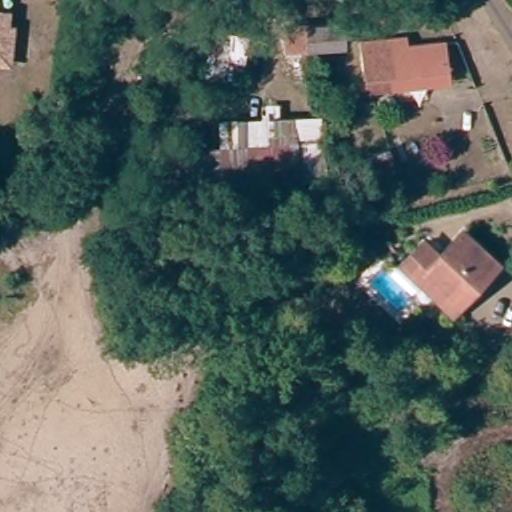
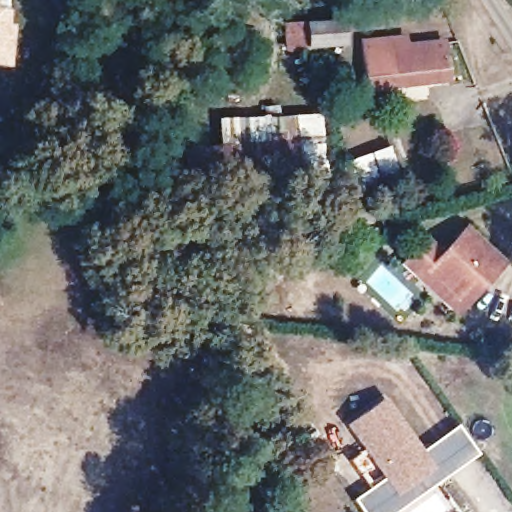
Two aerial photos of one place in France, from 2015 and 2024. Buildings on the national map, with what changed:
unchanged [(345,48),(284,52),(283,25),(343,20),(345,48)]
unchanged [(9,24),(7,39),(12,40),(10,73),(0,72),(0,23),(9,24)]
unchanged [(245,62),(232,61),(231,86),(203,84),(212,32),(248,31),(245,62)]
unchanged [(365,37),(406,34),(408,50),(367,55),(365,37)]
unchanged [(371,89),(367,55),(441,46),(445,81),(371,89)]
unchanged [(217,118),(322,114),(327,177),(300,180),(298,152),(295,119),(284,120),(284,132),(271,134),(272,142),(219,149),(217,118)]
unchanged [(189,152),(272,142),(271,134),(284,132),(284,120),(295,119),(300,180),(193,190),(189,152)]
new [(347,157),(393,150),(398,182),(352,190),(347,157)]
unchanged [(404,262),(429,241),(442,254),(463,235),(498,270),(456,316),(421,280),(404,262)]
new [(396,512),(361,512),(352,500),(382,477),(345,425),(384,397),(422,449),(456,425),(477,454),(396,512)]

